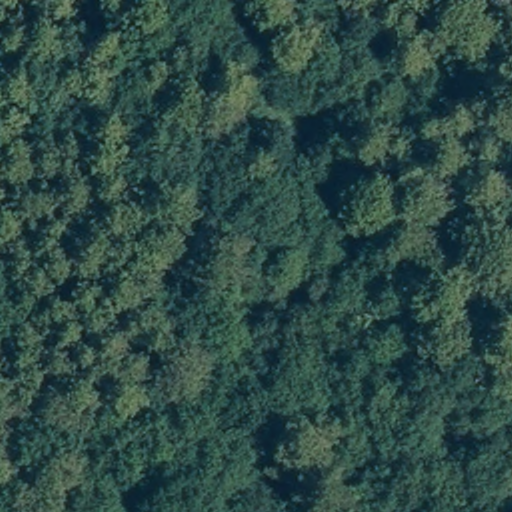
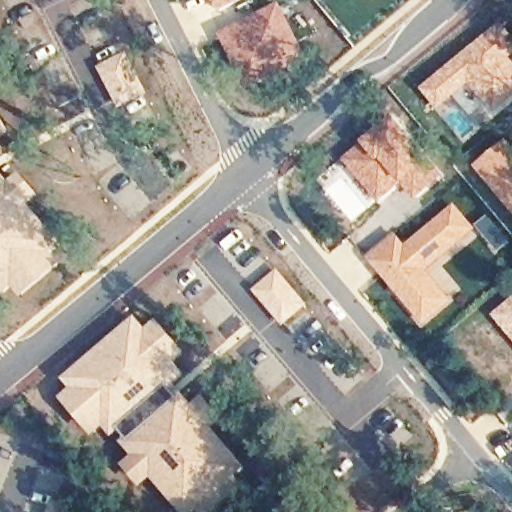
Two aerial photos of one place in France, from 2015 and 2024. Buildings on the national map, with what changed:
new [(213,0),(245,0),(219,12),(213,0)]
new [(219,34),(279,3),(297,37),(292,52),(298,65),(248,91),(246,86),(219,34)]
new [(500,24),(512,36),(512,58),(511,59),(512,60),(512,100),(496,115),(470,85),(439,111),(422,90),(500,24)]
new [(0,139),(0,113),(11,132),(0,139)]
new [(362,142),(393,117),(428,157),(444,176),(416,201),(402,185),(380,204),(342,161),(362,142)]
new [(508,139),(512,143),(512,212),(474,167),(508,139)]
new [(0,157),(0,141),(6,154),(0,157)]
new [(20,174),(39,195),(29,205),(65,247),(55,255),(62,264),(24,300),(13,287),(4,297),(0,291),(0,171),(10,182),(20,174)]
new [(366,257),(395,233),(405,245),(455,204),(476,230),(428,272),(453,302),(426,326),(366,257)]
new [(278,270),(308,305),(284,327),(253,292),(278,270)]
new [(492,316),(512,299),(512,339),(492,316)]
new [(71,390),(63,380),(136,317),(147,329),(157,320),(187,353),(176,362),(186,375),(170,389),(176,397),(181,392),(192,406),(203,396),(223,418),(213,429),(246,468),(235,477),(245,488),(219,512),(199,512),(198,511),(197,512),(182,512),(152,478),(141,488),(122,466),(132,456),(121,443),(126,439),(120,433),(114,439),(104,428),(93,437),(60,399),(71,390)]
new [(88,512),(49,512),(54,498),(88,512)]

